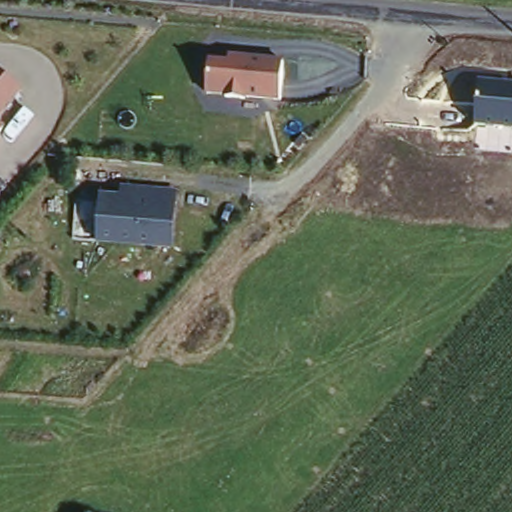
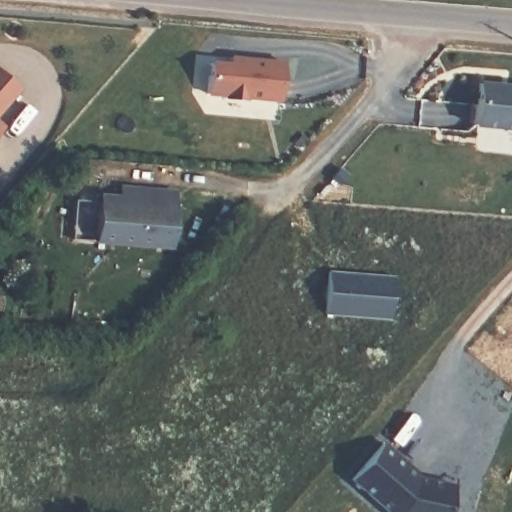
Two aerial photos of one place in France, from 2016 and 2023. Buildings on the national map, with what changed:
unchanged [(211,62),(229,63),(230,56),(283,59),(278,100),(208,96),(211,62)]
unchanged [(20,88),(0,113),(0,71),(20,88)]
unchanged [(512,126),(472,126),(473,74),(512,80),(512,126)]
unchanged [(4,125),(0,130),(0,122),(4,125)]
unchanged [(121,195),(123,190),(175,192),(170,247),(96,239),(101,194),(121,195)]
new [(393,276),(392,318),(327,316),(331,271),(393,276)]
new [(405,467),(417,479),(446,484),(444,504),(448,506),(448,512),(390,512),(355,479),(384,443),(408,464),(405,467)]

